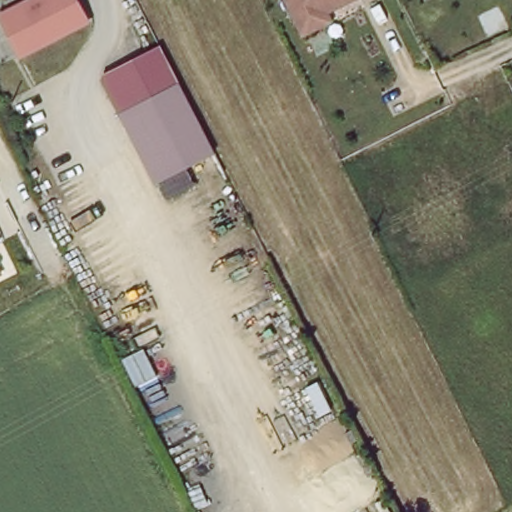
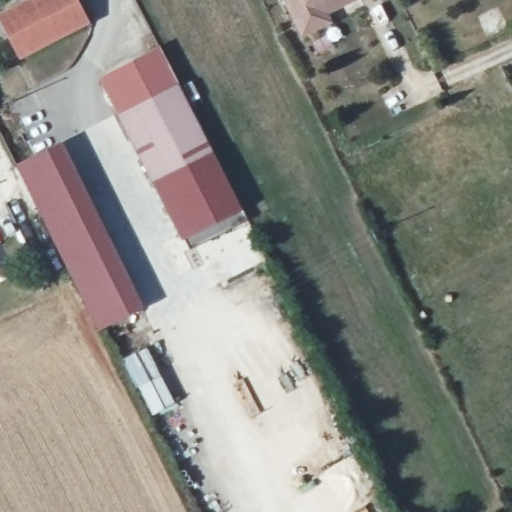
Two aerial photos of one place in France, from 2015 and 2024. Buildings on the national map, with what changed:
unchanged [(82,27),(18,62),(0,28),(0,18),(34,0),(67,0),(82,27)]
unchanged [(302,35),(297,26),(283,0),(346,0),(323,12),(328,21),(302,35)]
unchanged [(159,182),(123,116),(103,77),(160,46),(180,84),(215,152),(159,182)]
new [(225,172),(243,208),(247,219),(190,248),(181,238),(152,182),(98,79),(103,77),(123,116),(159,182),(168,203),(225,172)]
new [(70,143),(150,305),(106,332),(59,234),(25,166),(70,143)]
unchanged [(225,172),(168,203),(159,182),(215,152),(225,172)]
unchanged [(0,279),(0,274),(2,279),(0,279)]

